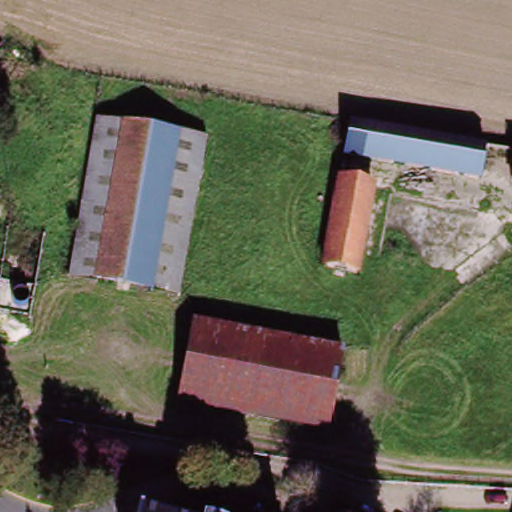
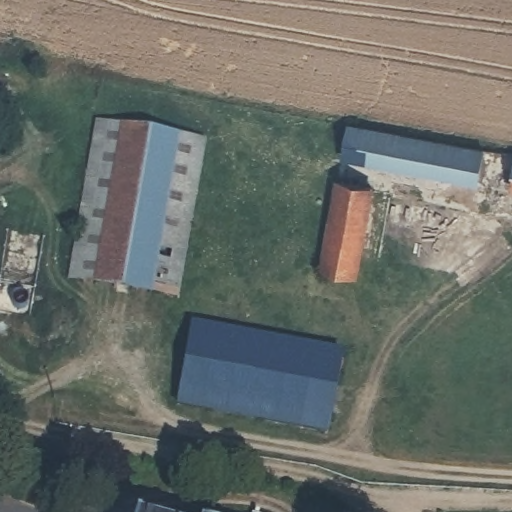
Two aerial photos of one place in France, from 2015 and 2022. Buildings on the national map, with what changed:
unchanged [(345,143),(350,114),(480,138),(475,167),(345,143)]
unchanged [(182,300),(65,277),(69,261),(96,119),(213,142),(182,300)]
unchanged [(350,275),(322,270),(339,180),(367,185),(350,275)]
unchanged [(341,328),(337,347),(194,320),(197,299),(341,328)]
unchanged [(322,429),(179,403),(194,320),(337,347),(322,429)]

